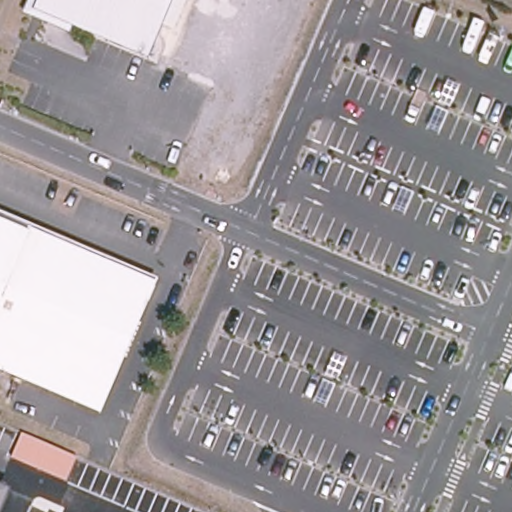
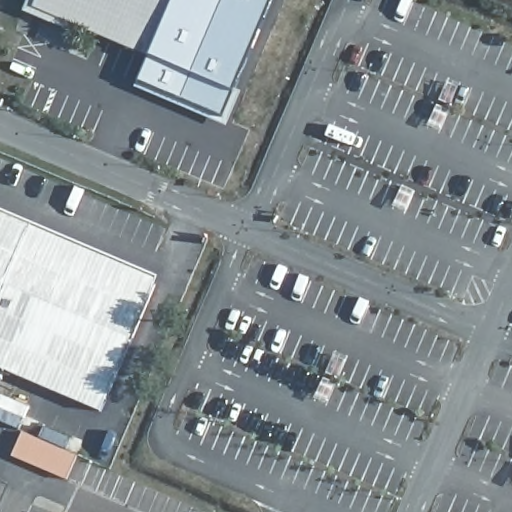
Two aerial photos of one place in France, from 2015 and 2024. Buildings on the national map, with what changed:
unchanged [(29,8),(32,0),(169,0),(144,57),(29,8)]
new [(144,57),(169,0),(274,0),(235,89),(243,92),(228,126),(137,88),(141,80),(150,59),(144,57)]
unchanged [(0,369),(0,218),(151,283),(96,410),(0,369)]
unchanged [(66,481),(11,458),(22,434),(77,457),(66,481)]
unchanged [(0,502),(0,487),(6,489),(0,502)]

